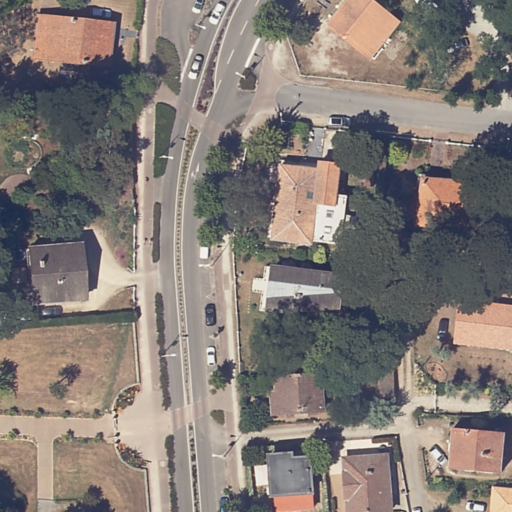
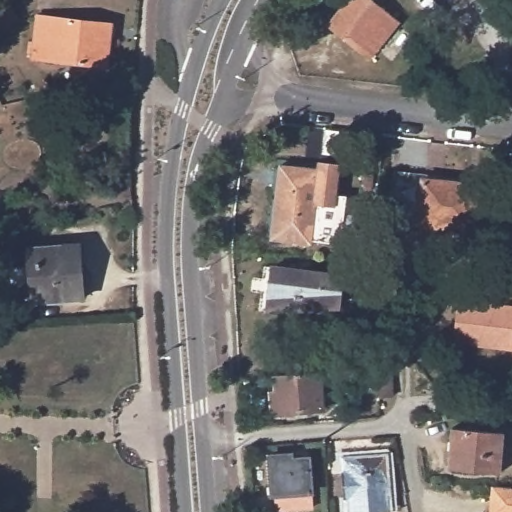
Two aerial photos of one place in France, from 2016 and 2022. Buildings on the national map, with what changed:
unchanged [(350,0),(366,0),(400,24),(374,61),(329,30),(350,0)]
unchanged [(33,57),(38,16),(90,22),(112,25),(111,34),(107,66),(33,57)]
unchanged [(509,27),(512,26),(512,32),(509,27)]
unchanged [(280,164),(289,165),(289,166),(319,170),(320,163),(339,165),(335,195),(346,196),(340,244),(310,240),(310,242),(271,237),(280,164)]
unchanged [(424,177),(478,184),(474,230),(419,222),(424,177)]
unchanged [(28,247),(76,243),(81,298),(33,303),(28,247)]
unchanged [(270,270),(339,281),(341,310),(273,316),(270,270)]
unchanged [(466,301),(512,305),(512,349),(461,345),(466,301)]
unchanged [(380,393),(380,366),(392,366),(393,393),(380,393)]
unchanged [(276,417),(274,379),(324,375),(327,412),(276,417)]
unchanged [(448,469),(450,440),(451,428),(501,432),(500,445),(498,472),(448,469)]
unchanged [(270,487),(267,487),(265,450),(286,449),(286,453),(305,452),(309,503),(271,506),(270,487)]
unchanged [(388,459),(392,510),(361,512),(348,512),(344,462),(388,459)]
unchanged [(512,494),(512,512),(487,512),(489,492),(512,494)]

